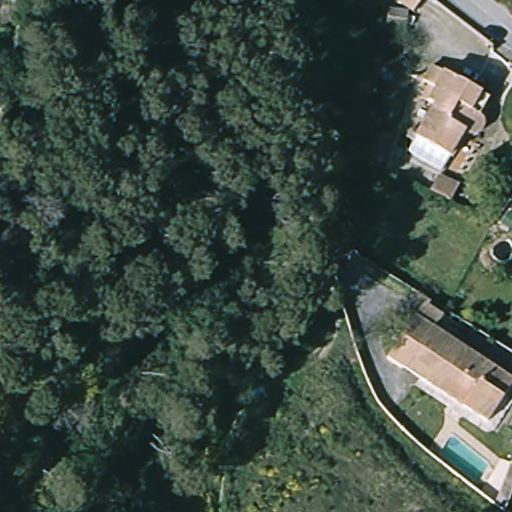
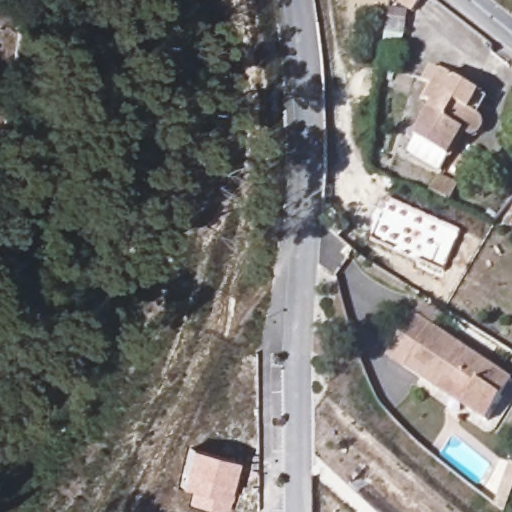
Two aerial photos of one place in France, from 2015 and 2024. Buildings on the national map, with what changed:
unchanged [(408,0),(415,0),(412,3),(408,0)]
unchanged [(470,112),(480,116),(485,122),(486,130),(483,136),(475,139),(467,136),(453,160),(420,141),(434,115),(420,105),(427,92),(420,88),(429,72),(478,99),(470,112)]
new [(368,234),(385,195),(460,229),(442,268),(368,234)]
unchanged [(499,403),(483,427),(382,360),(410,321),(488,372),(509,387),(499,403)]
new [(226,512),(221,512),(188,503),(191,488),(180,486),(190,447),(235,460),(226,496),(226,512)]

